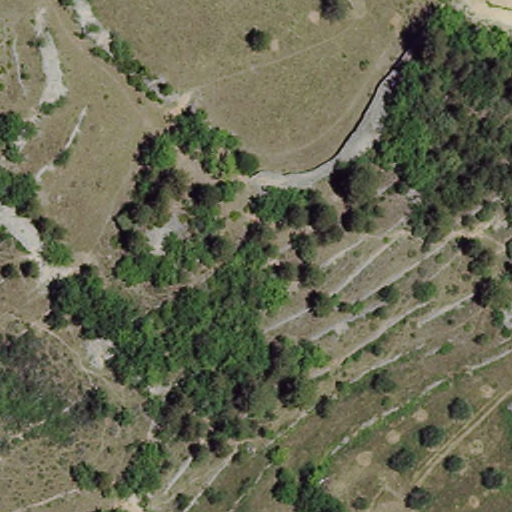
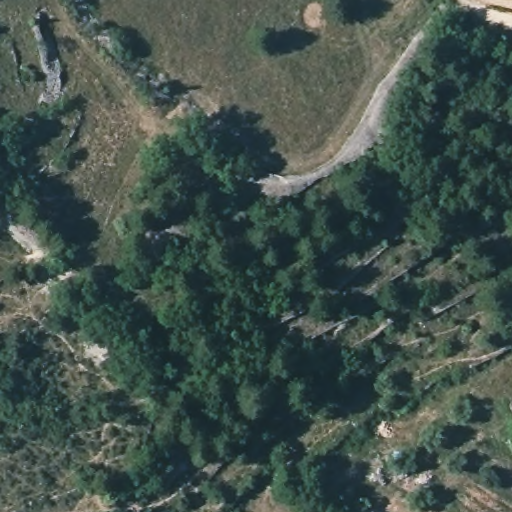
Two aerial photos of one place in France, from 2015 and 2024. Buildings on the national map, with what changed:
[]

